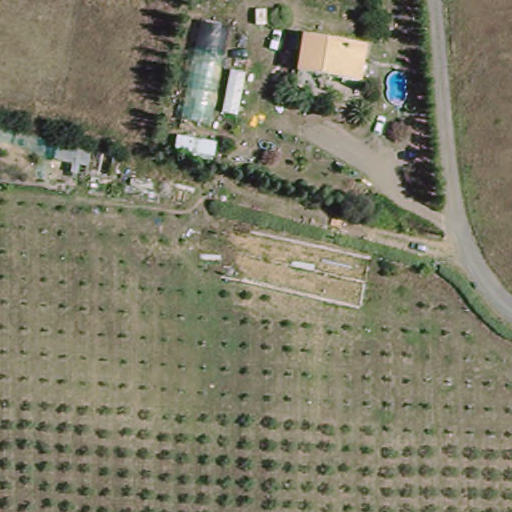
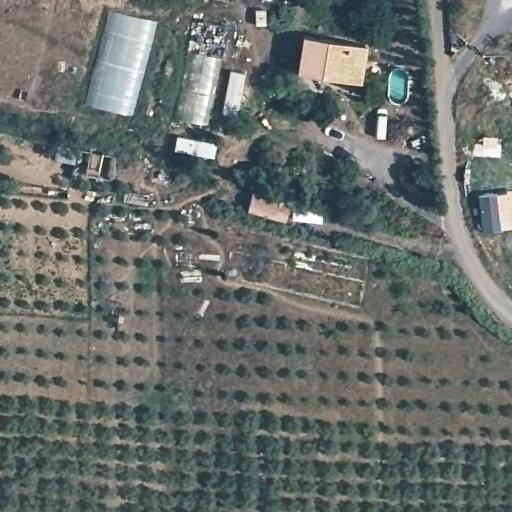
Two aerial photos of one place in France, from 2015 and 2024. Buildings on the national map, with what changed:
new [(106,11),(155,21),(132,117),(85,105),(106,11)]
unchanged [(200,17),(234,24),(217,126),(182,117),(200,17)]
unchanged [(370,51),(360,85),(302,69),(311,35),(370,51)]
new [(483,231),(479,196),(512,192),(512,228),(483,231)]

